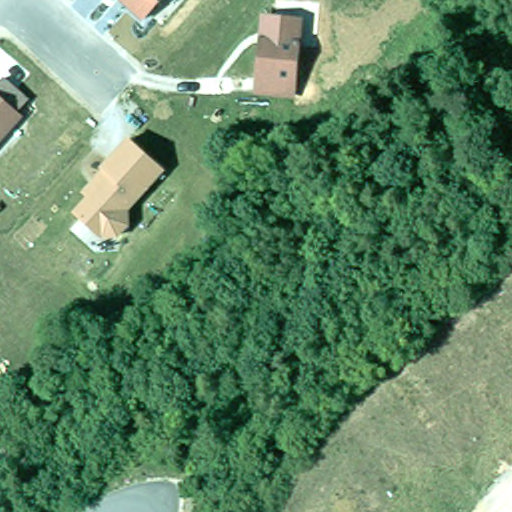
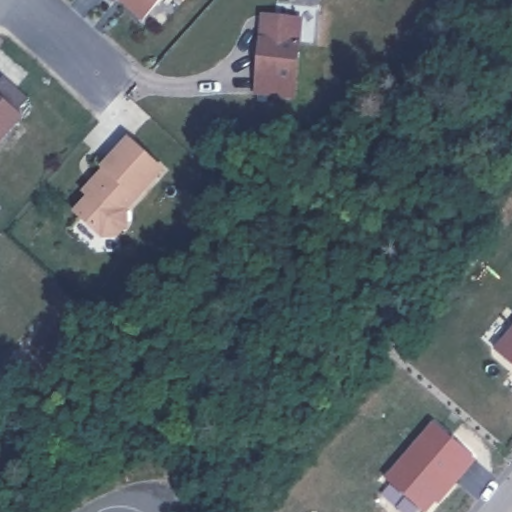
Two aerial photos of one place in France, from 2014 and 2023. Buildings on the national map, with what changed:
unchanged [(141,21),(123,4),(126,1),(124,0),(161,0),(141,21)]
unchanged [(302,16),(298,94),(254,94),(261,15),(302,16)]
unchanged [(0,138),(0,100),(18,117),(0,138)]
unchanged [(163,165),(128,211),(133,224),(122,237),(101,237),(70,214),(85,197),(79,193),(98,168),(126,138),(163,165)]
new [(512,329),(512,365),(494,349),(512,329)]
new [(428,512),(422,512),(385,478),(434,423),(475,459),(428,512)]

